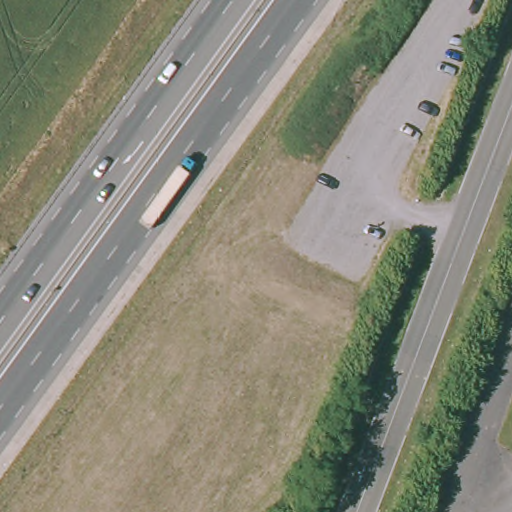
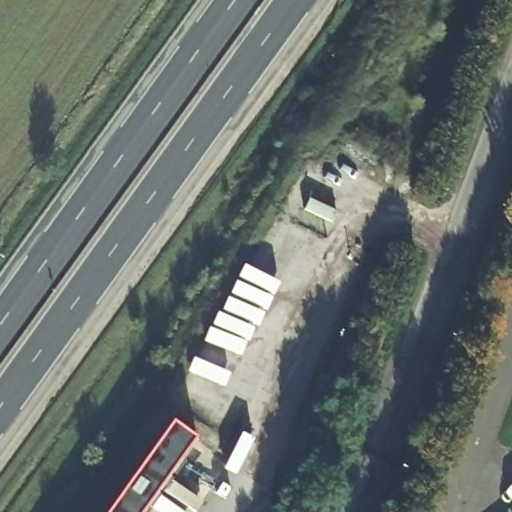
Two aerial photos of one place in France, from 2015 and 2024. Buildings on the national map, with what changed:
new [(198,450),(155,512),(107,512),(166,430),(198,450)]

